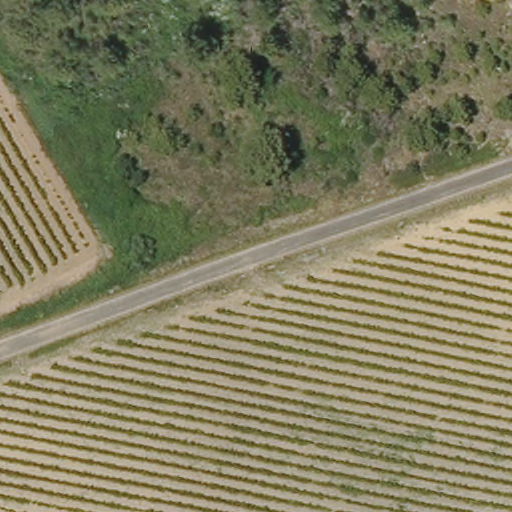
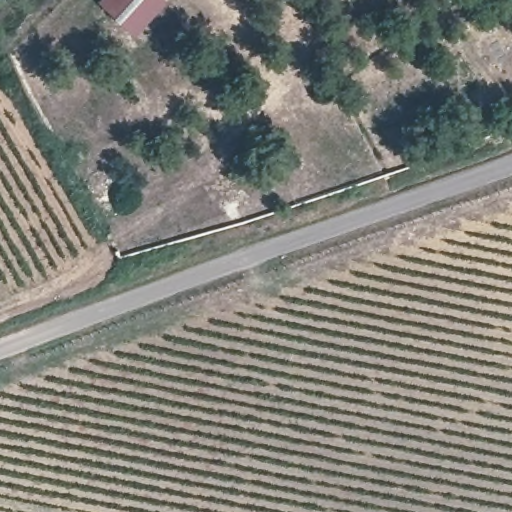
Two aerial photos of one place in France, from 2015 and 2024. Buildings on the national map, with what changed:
new [(122,0),(166,0),(133,36),(110,14),(122,0)]

